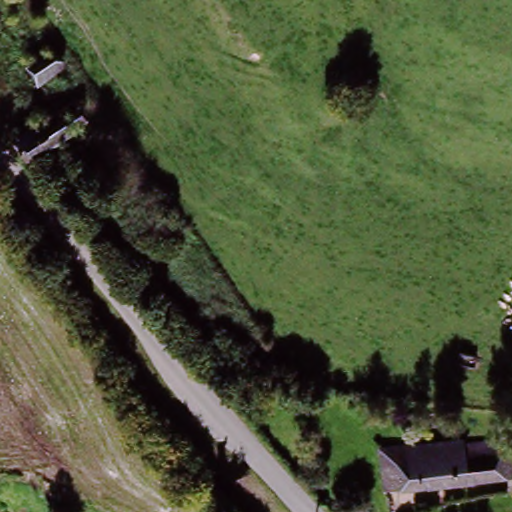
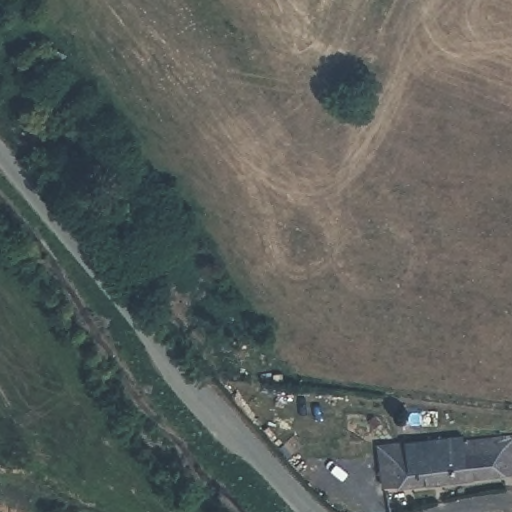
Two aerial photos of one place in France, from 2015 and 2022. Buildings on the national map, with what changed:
unchanged [(15,61),(25,53),(32,63),(48,52),(63,73),(37,92),(15,61)]
unchanged [(67,102),(83,122),(25,170),(7,149),(67,102)]
unchanged [(461,442),(512,435),(512,439),(512,475),(448,485),(442,441),(460,438),(461,442)]
unchanged [(382,495),(375,451),(442,441),(448,485),(382,495)]

